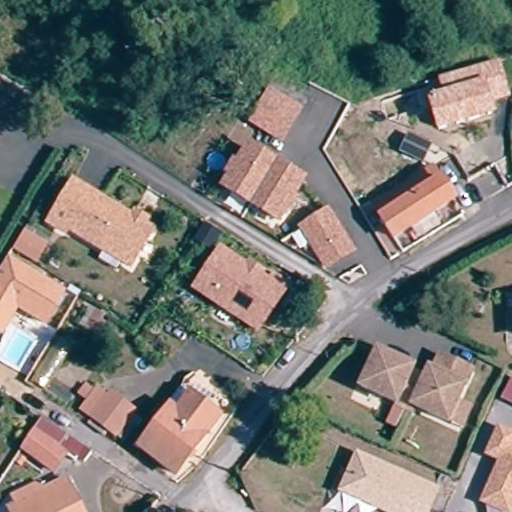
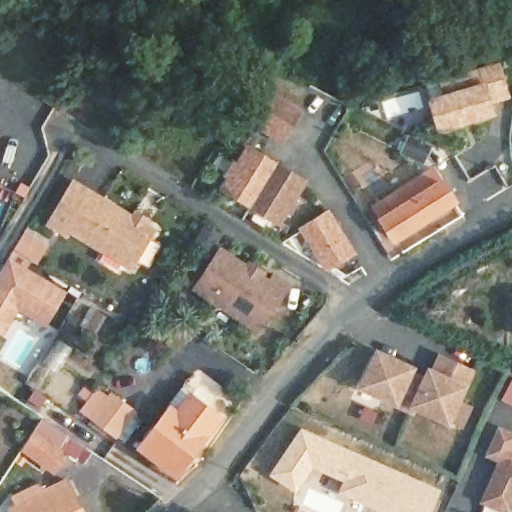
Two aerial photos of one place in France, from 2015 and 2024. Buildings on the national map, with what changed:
unchanged [(443,92),(438,79),(500,61),(511,97),(492,104),(495,115),(437,131),(426,97),(443,92)]
unchanged [(301,112),(286,142),(256,127),(265,108),(270,97),(301,112)]
unchanged [(245,165),(254,147),(310,175),(301,193),(305,195),(299,207),(295,205),(289,216),(233,188),(239,177),(235,175),(240,163),(245,165)]
unchanged [(373,205),(432,171),(457,210),(399,245),(373,205)]
unchanged [(148,206),(160,214),(157,219),(165,224),(143,260),(81,222),(79,226),(62,216),(86,176),(145,211),(148,206)]
unchanged [(325,214),(352,250),(327,267),(301,231),(325,214)]
unchanged [(27,232),(48,245),(36,265),(15,251),(27,232)]
unchanged [(275,281),(289,290),(260,335),(196,293),(222,254),(249,271),(251,268),(264,277),(262,280),(271,286),(275,281)]
unchanged [(46,326),(19,310),(3,335),(0,334),(0,270),(9,255),(66,290),(46,326)]
unchanged [(412,408),(410,413),(359,390),(375,355),(405,369),(407,375),(422,382),(424,378),(432,375),(439,360),(469,373),(445,424),(412,408)]
unchanged [(512,377),(512,405),(500,400),(512,377)]
unchanged [(87,415),(76,408),(90,387),(101,395),(104,390),(105,391),(129,407),(112,432),(91,418),(87,415)]
unchanged [(147,453),(175,410),(185,417),(196,400),(223,418),(184,478),(147,453)]
unchanged [(81,462),(70,455),(64,462),(56,457),(48,469),(15,446),(37,415),(64,432),(80,443),(89,450),(81,462)]
unchanged [(512,441),(511,443),(512,444),(512,506),(511,505),(486,495),(495,475),(504,453),(491,447),(501,424),(512,429),(512,441)]
new [(313,468),(296,492),(270,475),(301,427),(359,456),(348,482),(313,468)]
unchanged [(441,490),(431,512),(390,512),(344,492),(359,456),(441,490)]
unchanged [(20,495),(40,484),(45,492),(66,480),(75,497),(83,512),(2,512),(13,505),(23,500),(20,495)]

